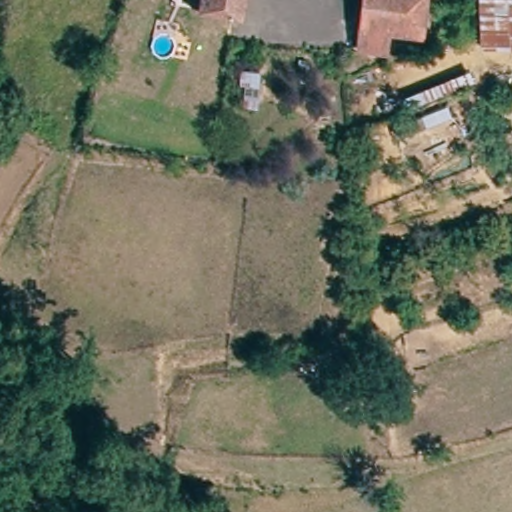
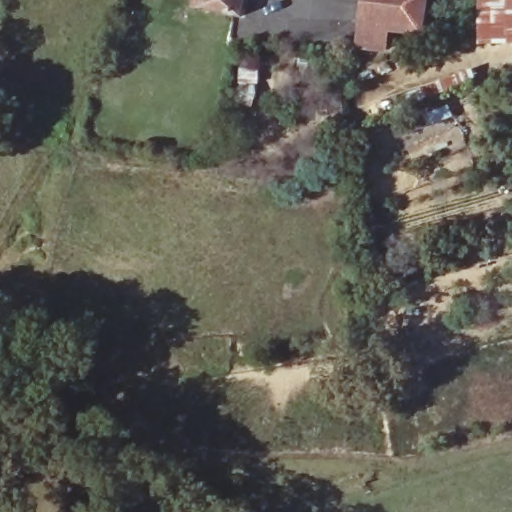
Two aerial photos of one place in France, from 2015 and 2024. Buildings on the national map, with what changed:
unchanged [(236,7),(205,0),(245,0),(243,8),(236,7)]
unchanged [(416,24),(385,17),(381,40),(367,37),(364,45),(351,43),(356,23),(362,0),(424,0),(416,24)]
unchanged [(512,42),(478,43),(476,0),(512,0),(512,42)]
unchanged [(410,97),(478,69),(486,84),(416,111),(410,97)]
unchanged [(397,132),(457,107),(463,124),(404,146),(397,132)]

